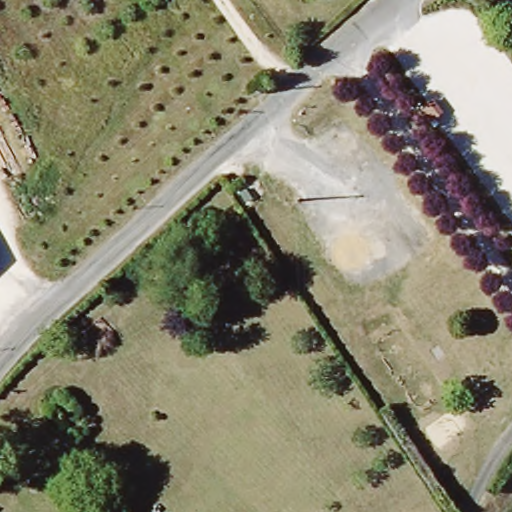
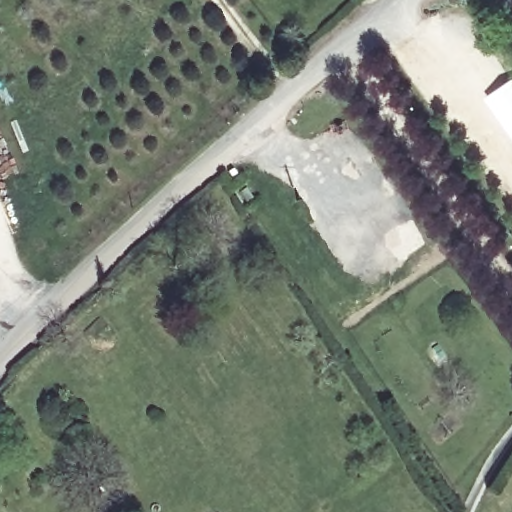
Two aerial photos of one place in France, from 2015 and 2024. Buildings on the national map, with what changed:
new [(512,78),(512,139),(483,97),(512,78)]

